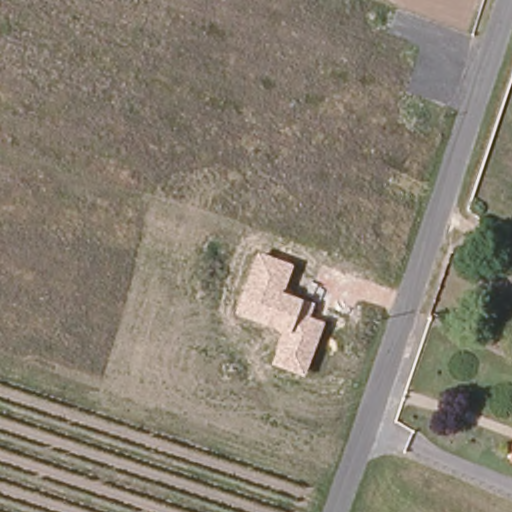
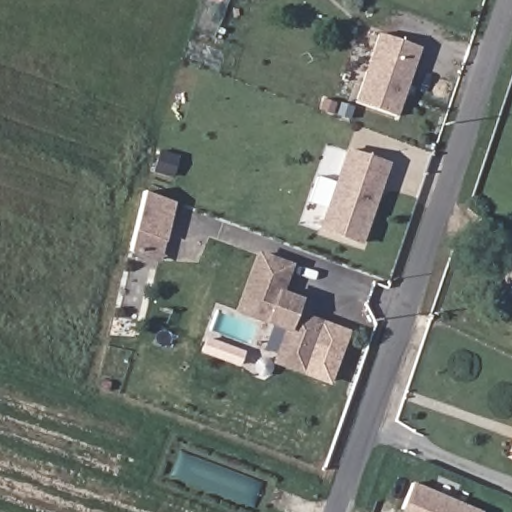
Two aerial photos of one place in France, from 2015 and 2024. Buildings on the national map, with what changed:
new [(355,103),(378,33),(420,48),(396,117),(355,103)]
new [(319,231),(346,147),(390,163),(362,245),(319,231)]
new [(160,263),(130,252),(144,191),(175,203),(160,263)]
unchanged [(310,316),(325,322),(304,377),(271,364),(283,331),(266,326),(236,314),(257,252),(292,265),(283,291),(302,299),(314,303),(310,316)]
new [(480,512),(412,512),(404,509),(415,484),(480,512)]

